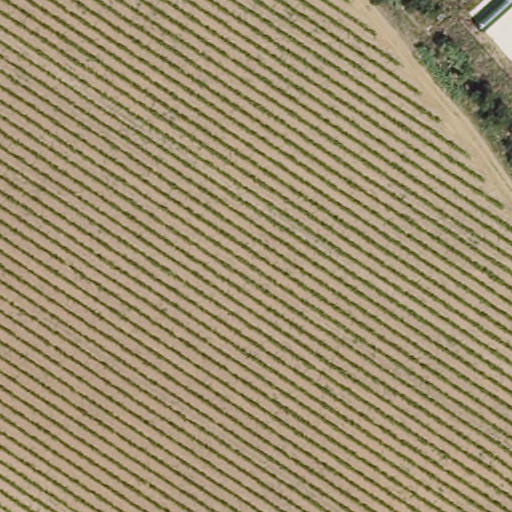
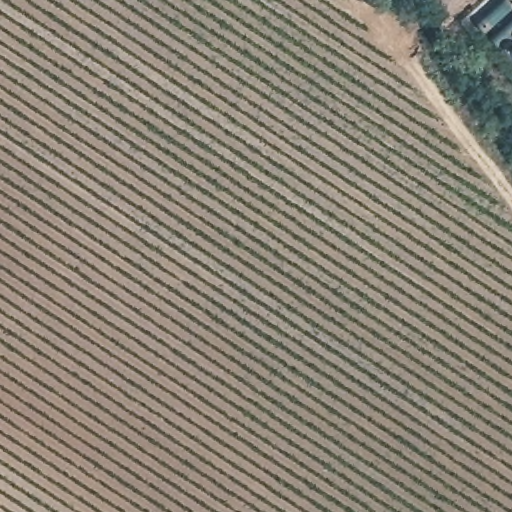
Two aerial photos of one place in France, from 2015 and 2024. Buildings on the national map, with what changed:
[]

